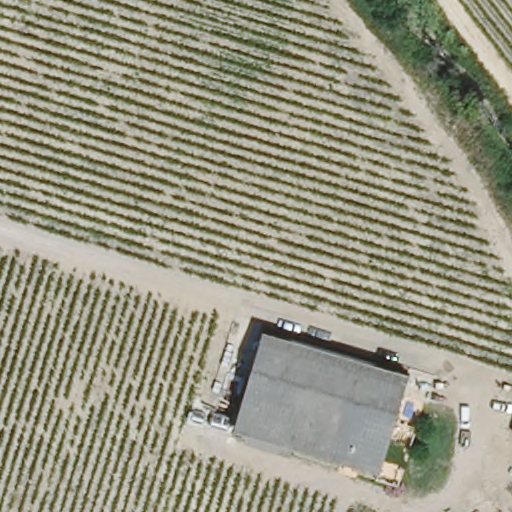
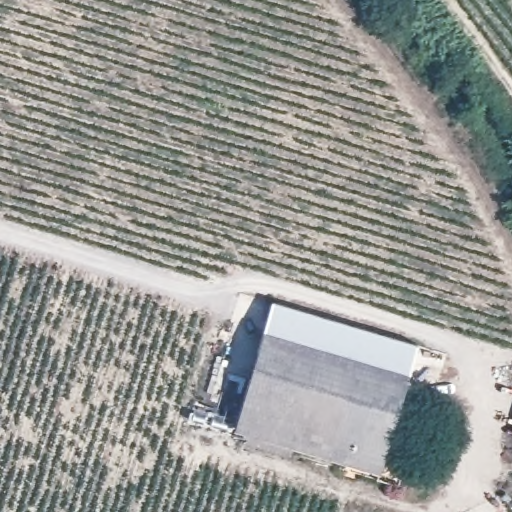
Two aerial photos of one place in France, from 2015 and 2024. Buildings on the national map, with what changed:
new [(273,301),(418,343),(409,374),(263,332),(273,301)]
unchanged [(381,472),(234,429),(263,332),(409,374),(381,472)]

